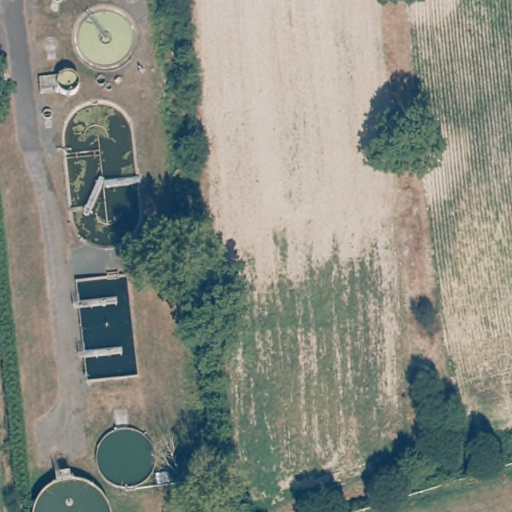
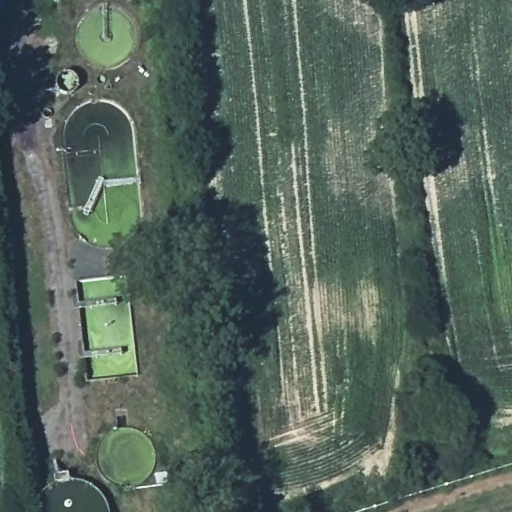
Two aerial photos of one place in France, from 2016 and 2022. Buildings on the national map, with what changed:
unchanged [(2,42),(6,69),(0,70),(0,43),(2,42)]

